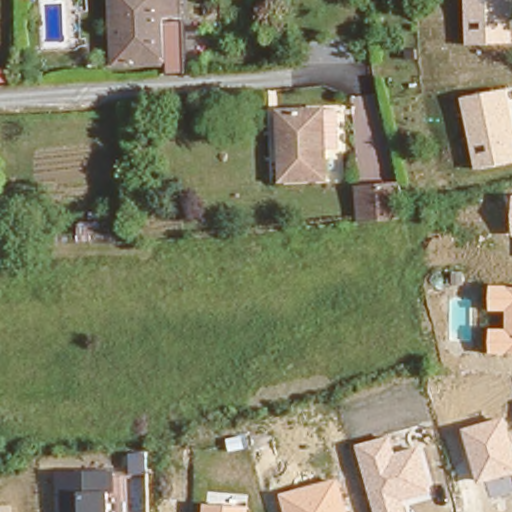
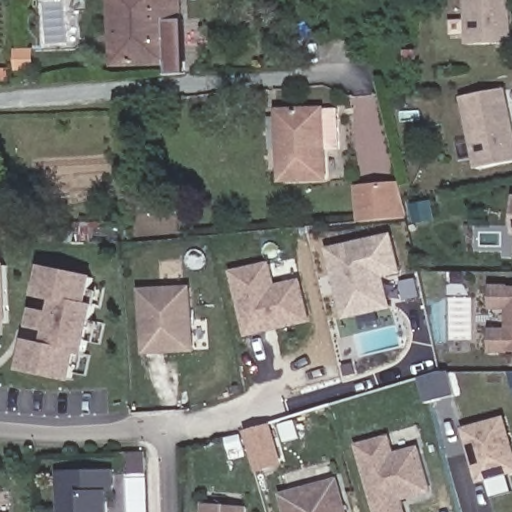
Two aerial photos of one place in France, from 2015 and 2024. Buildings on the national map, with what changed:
unchanged [(109,0),(177,0),(177,19),(162,19),(164,62),(126,64),(110,64),(110,27),(109,0)]
unchanged [(466,0),(512,0),(512,7),(512,43),(467,44),(466,0)]
unchanged [(462,98),(507,88),(512,113),(512,162),(477,169),(462,98)]
unchanged [(274,176),(273,106),(315,104),(328,103),(332,144),(316,145),(317,174),(274,176)]
unchanged [(358,182),(393,182),(398,195),(400,200),(405,215),(357,219),(358,198),(358,182)]
new [(402,274),(385,278),(392,309),(345,320),(327,248),(393,233),(402,274)]
new [(246,338),(231,270),(272,262),(277,284),(302,279),(312,323),(246,338)]
new [(8,264),(11,324),(0,324),(0,264),(8,264)]
new [(19,370),(25,339),(42,342),(46,332),(27,328),(31,308),(50,311),(52,300),(34,297),(40,265),(95,277),(89,304),(95,305),(85,356),(78,354),(72,382),(19,370)]
new [(191,285),(196,352),(144,355),(141,288),(191,285)]
unchanged [(492,329),(507,329),(508,311),(492,311),(493,286),(512,286),(512,354),(492,354),(492,329)]
unchanged [(507,417),(512,436),(512,474),(478,484),(463,429),(507,417)]
new [(267,426),(278,465),(255,472),(244,433),(267,426)]
unchanged [(357,444),(392,436),(396,453),(420,447),(432,492),(403,500),(406,512),(375,512),(357,444)]
unchanged [(107,492),(108,512),(61,512),(60,494),(58,473),(115,471),(116,491),(107,492)]
unchanged [(281,494),(338,479),(348,512),(285,512),(281,494)]
unchanged [(204,504),(249,507),(248,512),(203,512),(204,504)]

